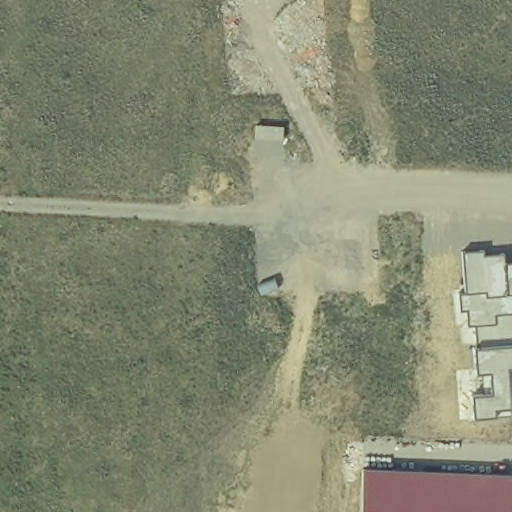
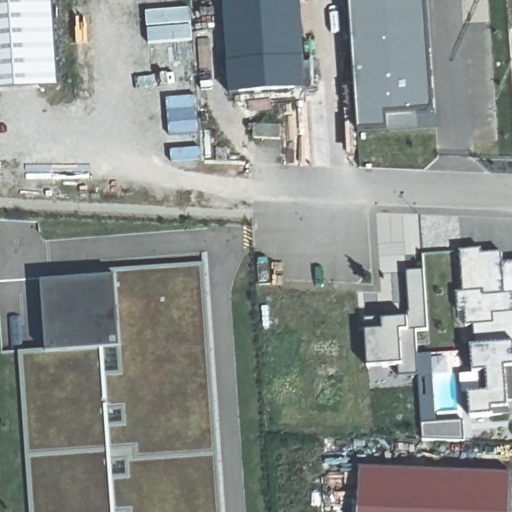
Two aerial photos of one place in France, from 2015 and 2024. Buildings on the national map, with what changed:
new [(53,0),(59,88),(0,92),(0,0),(53,0)]
new [(232,96),(229,64),(225,0),(301,0),(304,59),(307,90),(232,96)]
new [(418,111),(419,128),(359,132),(353,0),(432,0),(438,114),(418,111)]
new [(191,7),(193,40),(148,44),(144,11),(191,7)]
unchanged [(482,255),(503,254),(504,264),(512,264),(512,402),(509,402),(509,407),(511,415),(493,416),(473,417),(472,395),(484,394),(482,372),(476,373),(474,348),(477,348),(476,326),(468,326),(467,309),(460,310),(459,293),(466,292),(463,253),(483,251),(482,255)]
new [(19,351),(47,351),(44,280),(84,278),(83,271),(206,262),(223,512),(30,512),(19,351)]
new [(401,366),(371,368),(369,334),(367,321),(386,321),(408,320),(409,313),(412,313),(408,273),(424,272),(428,330),(416,331),(419,375),(400,376),(401,366)]
new [(464,441),(424,440),(423,425),(464,422),(464,441)]
unchanged [(512,506),(512,512),(360,512),(363,468),(512,474),(512,506)]

